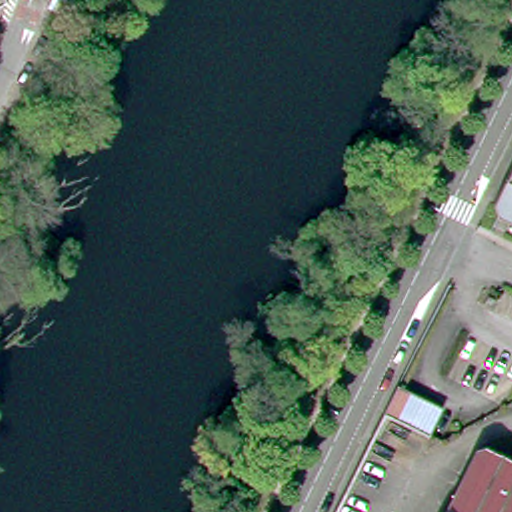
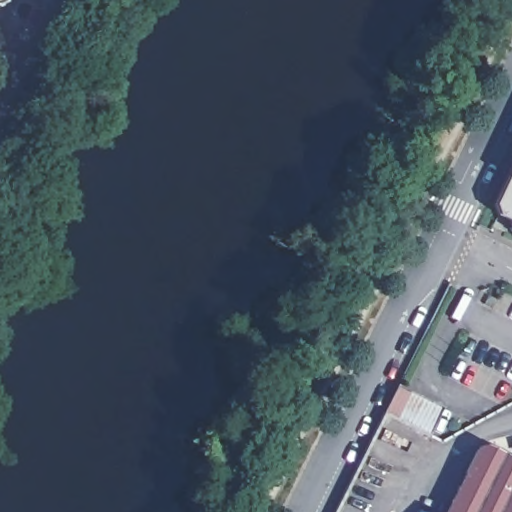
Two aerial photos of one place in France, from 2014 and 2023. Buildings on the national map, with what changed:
unchanged [(499,205),(512,178),(512,220),(503,215),(499,205)]
unchanged [(379,409),(393,381),(442,405),(428,433),(379,409)]
unchanged [(512,457),(512,512),(449,512),(482,443),(512,457)]

